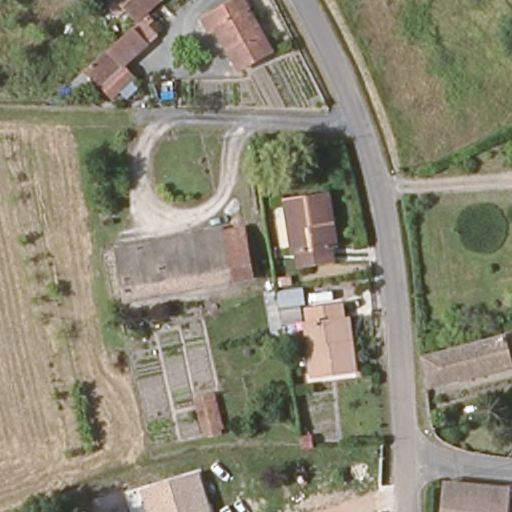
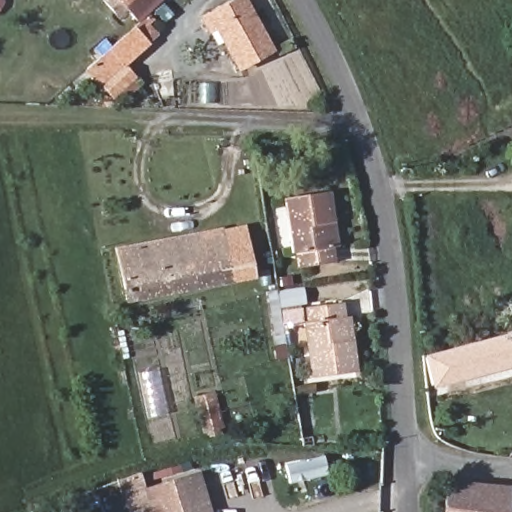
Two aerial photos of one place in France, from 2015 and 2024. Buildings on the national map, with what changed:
unchanged [(111,4),(115,0),(161,0),(140,20),(129,7),(120,15),(111,4)]
unchanged [(232,0),(245,0),(270,49),(239,67),(216,27),(207,31),(201,17),(232,0)]
unchanged [(104,83),(127,62),(123,61),(110,46),(140,20),(152,34),(156,40),(129,64),(136,75),(116,95),(104,83)]
unchanged [(333,248),(334,263),(301,268),(299,252),(292,252),(285,202),(327,192),(333,221),(339,247),(333,248)]
unchanged [(117,248),(221,227),(239,224),(249,273),(230,277),(128,298),(117,248)]
unchanged [(357,372),(312,377),(303,322),(287,326),(287,340),(276,342),(262,292),(303,285),(306,306),(349,301),(357,372)]
unchanged [(496,365),(497,370),(434,386),(427,357),(512,332),(512,361),(496,365)]
unchanged [(213,388),(225,432),(202,438),(192,395),(213,388)]
unchanged [(208,512),(150,512),(142,486),(194,469),(208,512)]
unchanged [(510,485),(509,512),(447,512),(448,482),(510,485)]

